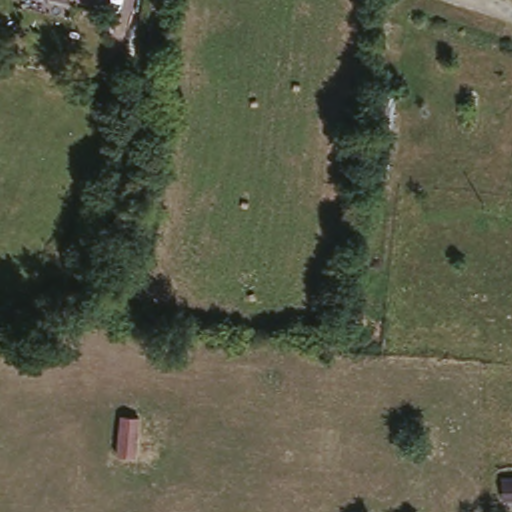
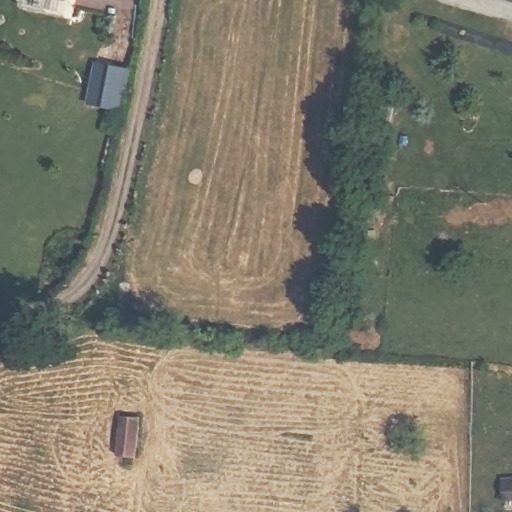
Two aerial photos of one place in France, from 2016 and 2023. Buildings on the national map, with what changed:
new [(94,60),(127,65),(121,106),(88,101),(94,60)]
unchanged [(133,420),(128,464),(111,461),(116,418),(133,420)]

